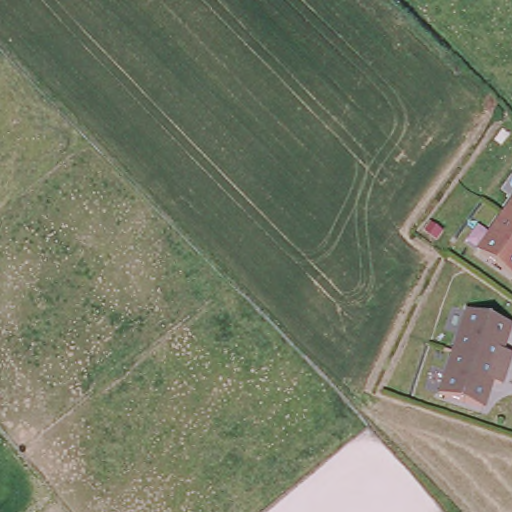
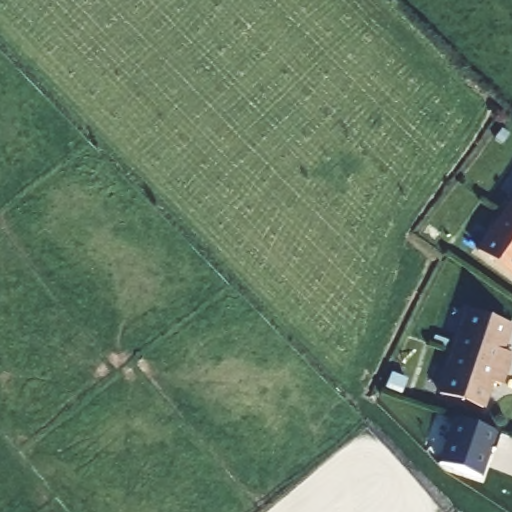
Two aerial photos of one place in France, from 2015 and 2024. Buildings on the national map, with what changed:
unchanged [(512,211),(502,204),(512,192),(512,211)]
unchanged [(512,263),(476,238),(502,204),(512,211),(512,263)]
unchanged [(481,302),(512,318),(512,341),(508,348),(512,350),(512,362),(510,366),(460,341),(476,312),(481,302)]
unchanged [(460,341),(510,366),(502,381),(493,376),(480,401),(440,380),(460,341)]
new [(495,450),(490,450),(482,477),(440,463),(453,421),(499,435),(495,450)]

